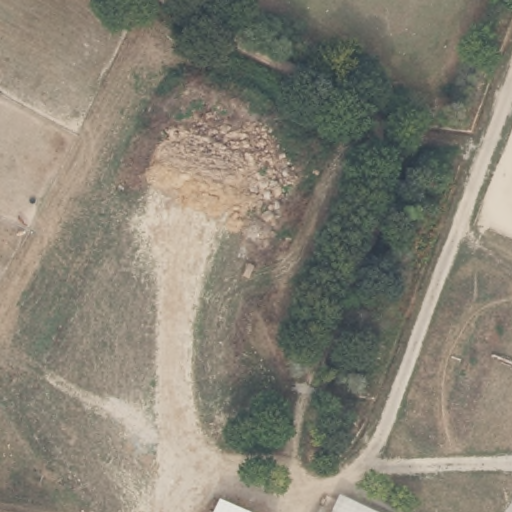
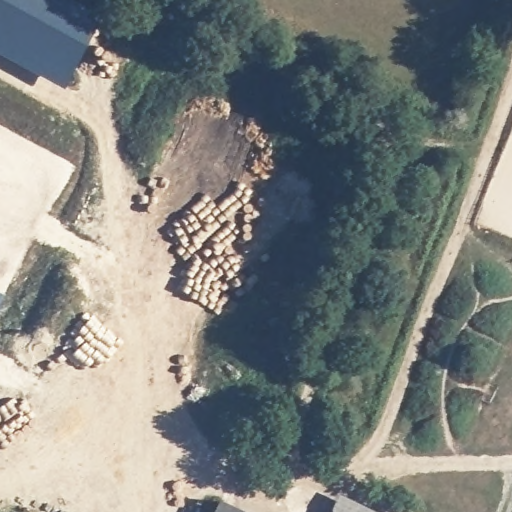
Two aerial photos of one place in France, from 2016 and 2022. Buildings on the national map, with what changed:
new [(100,17),(66,88),(0,53),(0,0),(69,0),(100,17)]
unchanged [(375,512),(331,512),(339,494),(375,512)]
unchanged [(239,512),(213,512),(218,501),(239,512)]

